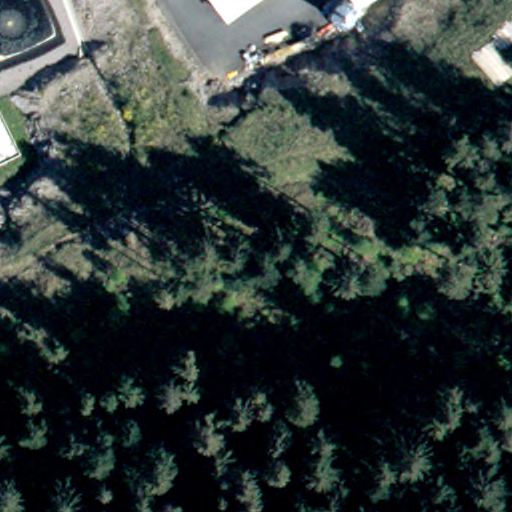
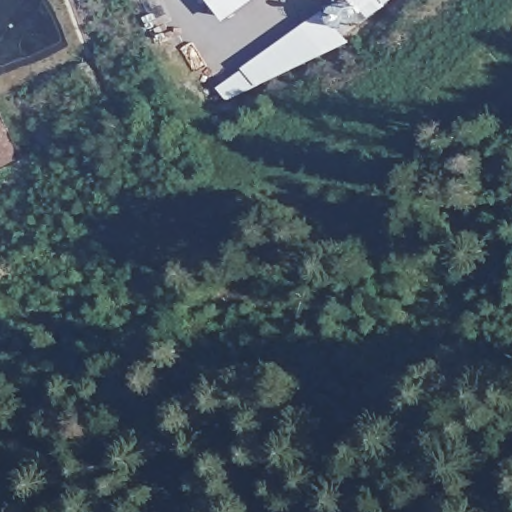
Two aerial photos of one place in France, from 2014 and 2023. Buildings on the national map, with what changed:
unchanged [(228,24),(211,0),(262,0),(228,24)]
new [(338,29),(346,41),(255,85),(241,66),(337,0),(380,0),(338,29)]

